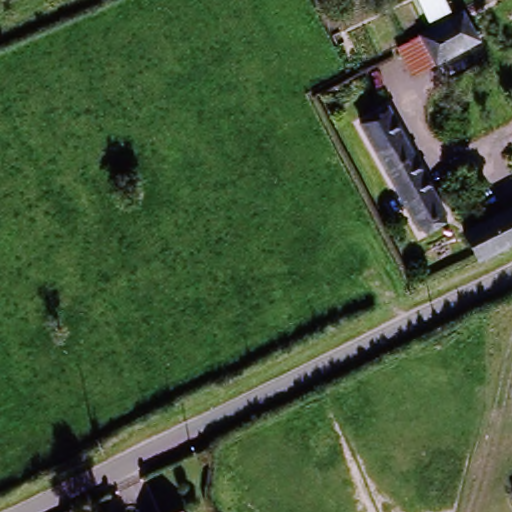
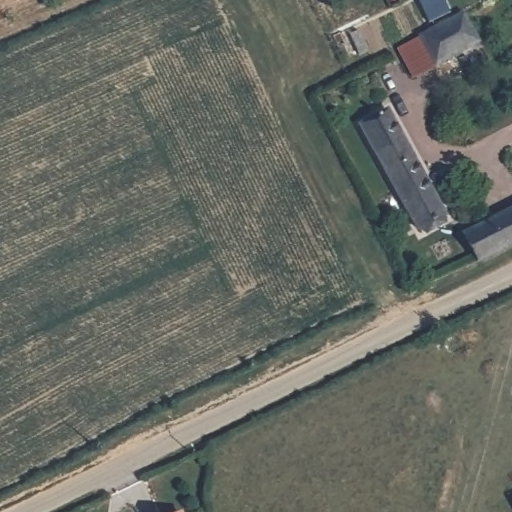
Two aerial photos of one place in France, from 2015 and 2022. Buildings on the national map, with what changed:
unchanged [(423,0),(445,0),(453,18),(434,27),(422,1),(423,0)]
unchanged [(413,72),(404,53),(426,41),(467,19),(482,47),(441,69),(418,81),(413,72)]
unchanged [(365,129),(391,114),(451,221),(424,236),(365,129)]
unchanged [(478,266),(464,239),(512,215),(512,249),(478,266)]

